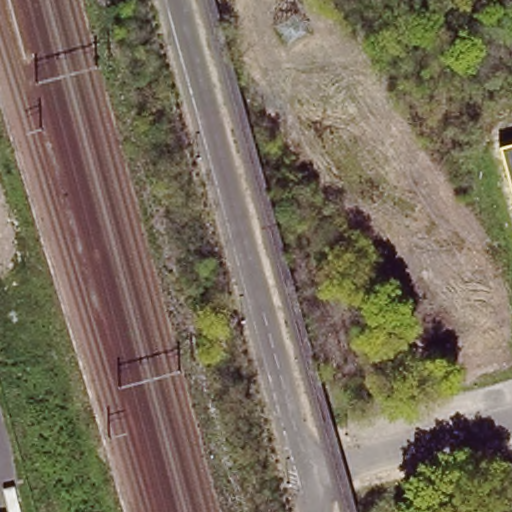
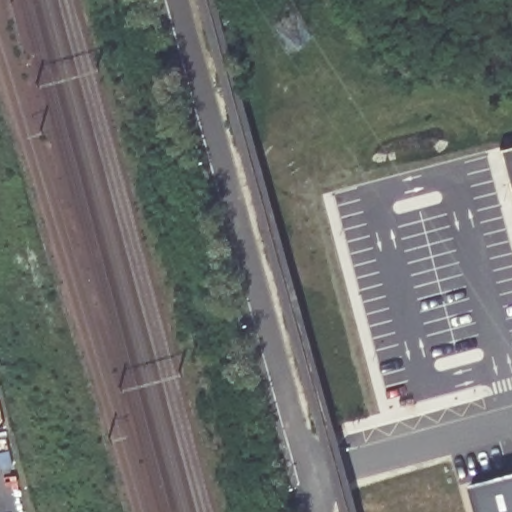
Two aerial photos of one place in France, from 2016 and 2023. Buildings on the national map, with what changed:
unchanged [(498,151),(512,147),(512,203),(498,151)]
new [(472,484),(512,472),(512,512),(479,512),(472,484)]

